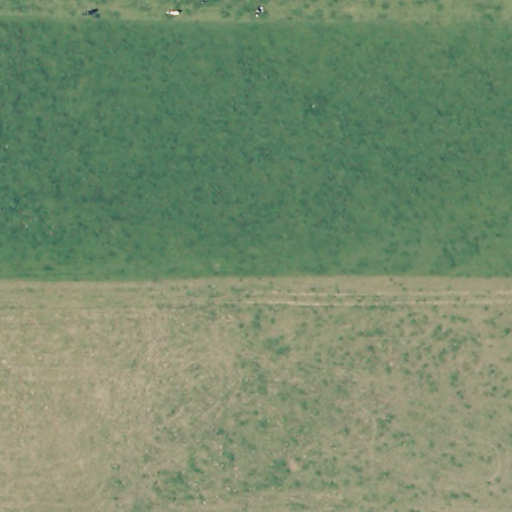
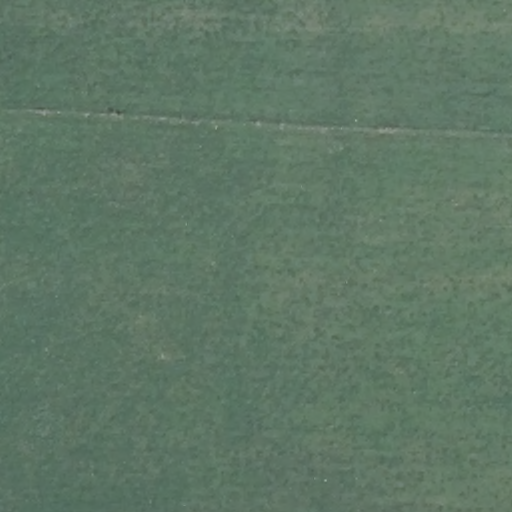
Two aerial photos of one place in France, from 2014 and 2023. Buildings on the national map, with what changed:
[]

